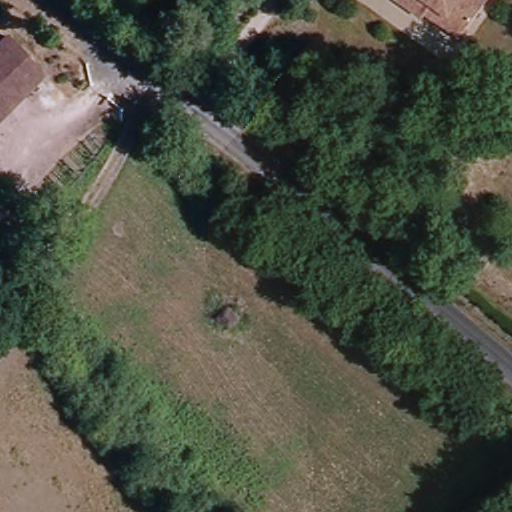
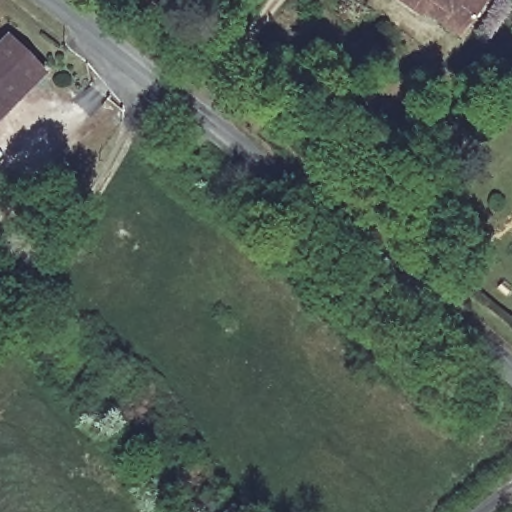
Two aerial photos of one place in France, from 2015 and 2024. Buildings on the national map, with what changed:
unchanged [(421,20),(393,0),(484,0),(486,2),(466,31),(459,40),(425,16),(421,20)]
unchanged [(0,115),(0,40),(37,72),(0,115)]

